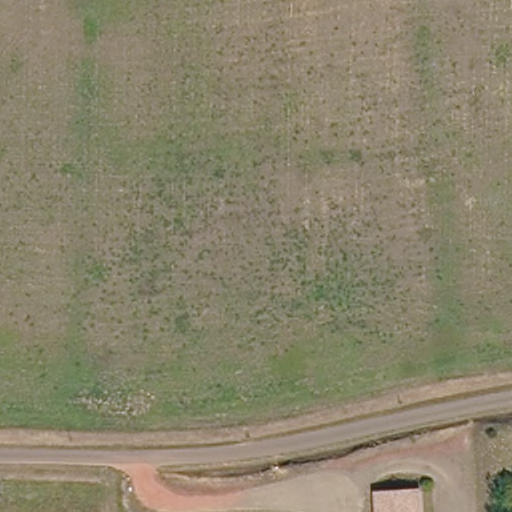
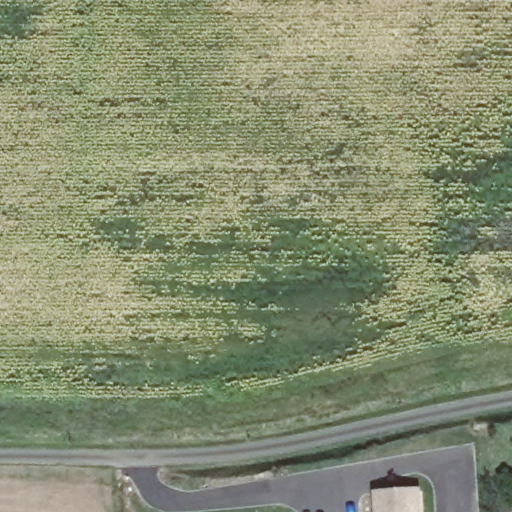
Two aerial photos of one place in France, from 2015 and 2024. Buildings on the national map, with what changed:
unchanged [(512,476),(512,490),(511,476),(512,476)]
unchanged [(417,493),(418,512),(378,512),(377,496),(417,493)]

